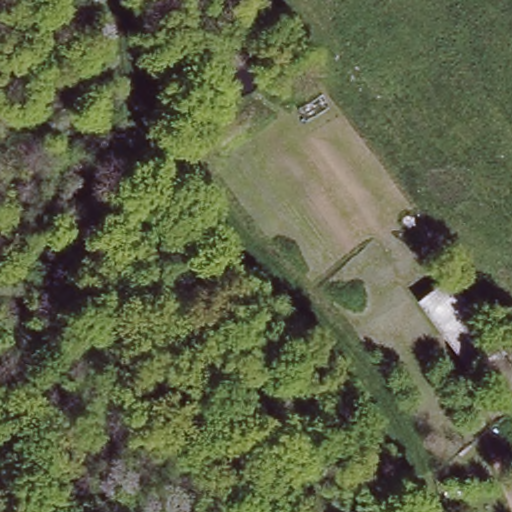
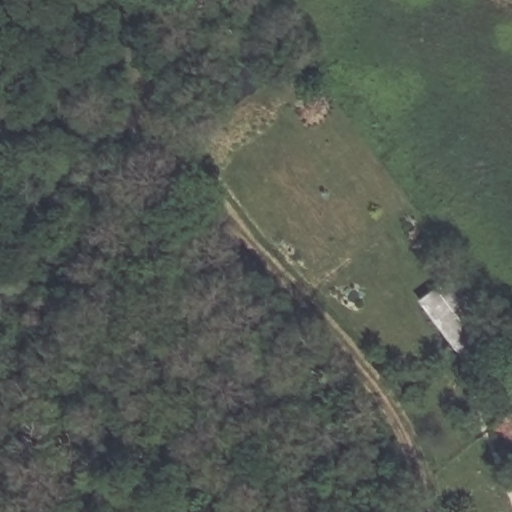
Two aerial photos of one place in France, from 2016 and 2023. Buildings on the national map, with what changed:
unchanged [(450,278),(506,353),(476,378),(420,300),(450,278)]

